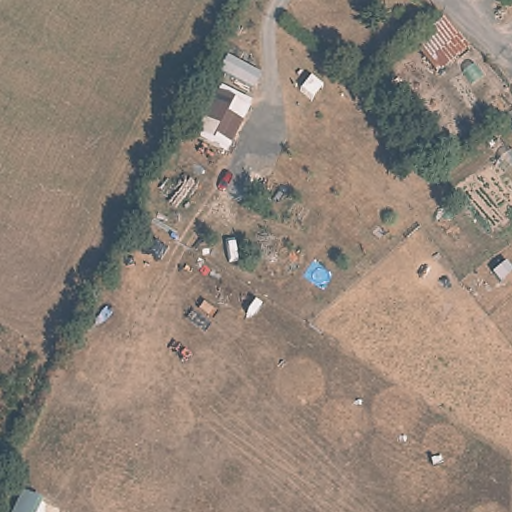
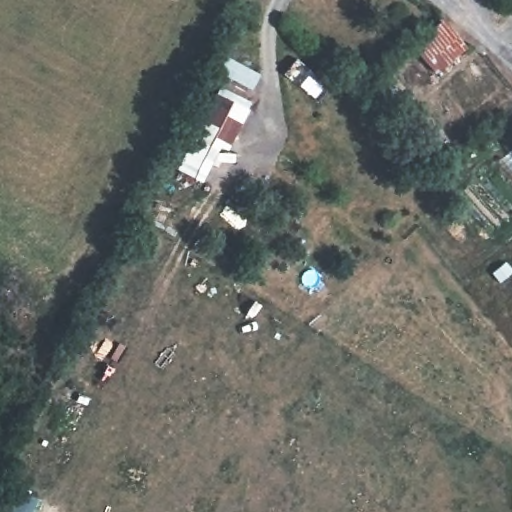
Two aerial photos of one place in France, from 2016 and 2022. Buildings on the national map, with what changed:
unchanged [(467,45),(439,72),(411,46),(443,16),(467,45)]
unchanged [(219,85),(252,103),(228,150),(220,147),(201,182),(176,169),(219,85)]

